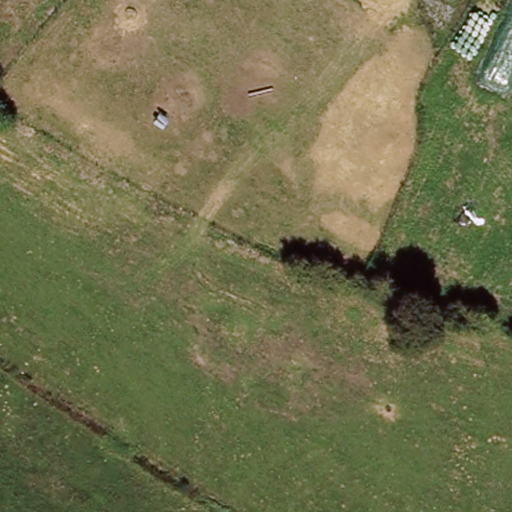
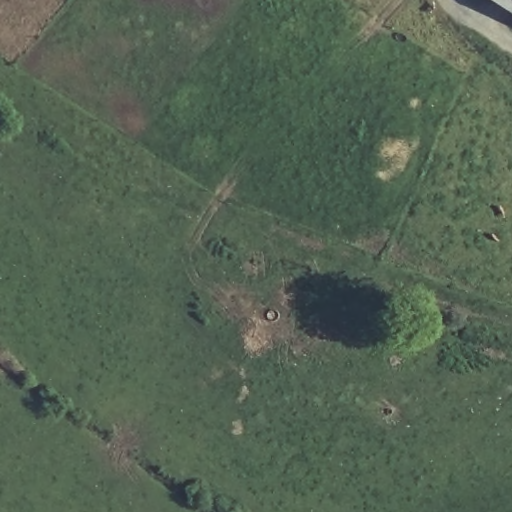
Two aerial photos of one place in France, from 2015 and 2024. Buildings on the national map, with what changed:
new [(512,12),(494,0),(512,0),(512,12)]

